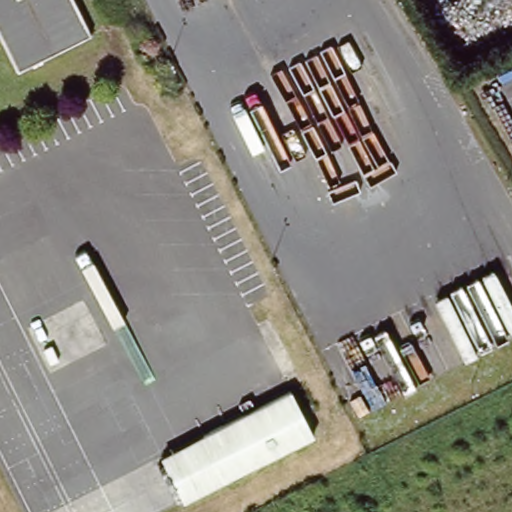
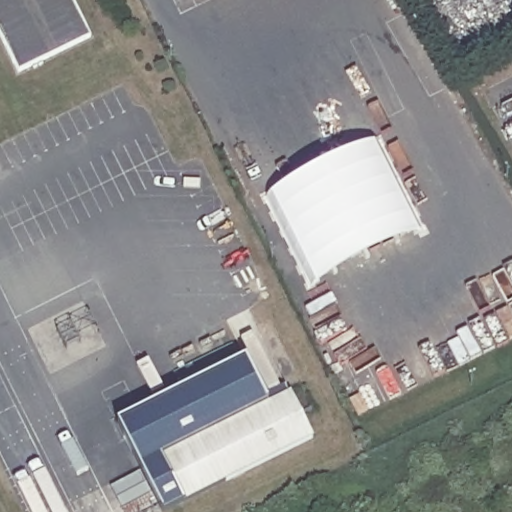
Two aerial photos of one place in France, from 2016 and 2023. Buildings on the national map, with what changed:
unchanged [(97,36),(23,72),(0,25),(0,0),(79,0),(97,36)]
new [(314,283),(270,194),(373,144),(417,233),(314,283)]
new [(165,458),(186,502),(166,512),(162,512),(117,422),(246,358),(271,407),(243,421),(165,458)]
unchanged [(165,458),(243,421),(294,396),(315,440),(260,467),(186,502),(165,458)]

